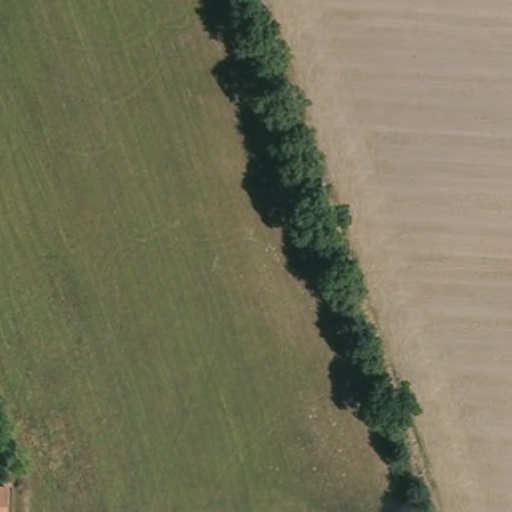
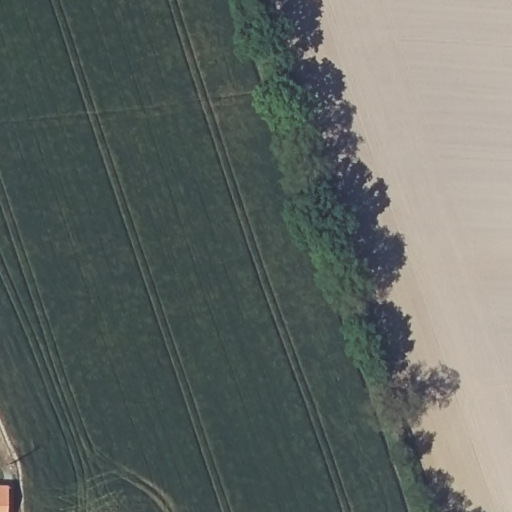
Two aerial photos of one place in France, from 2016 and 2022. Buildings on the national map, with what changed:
unchanged [(0,511),(0,483),(2,483),(2,484),(0,511)]

